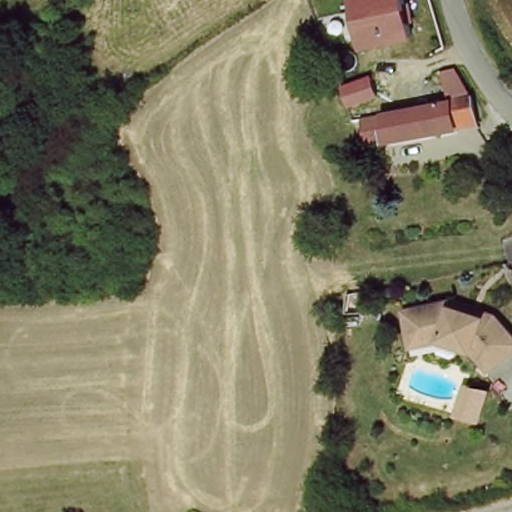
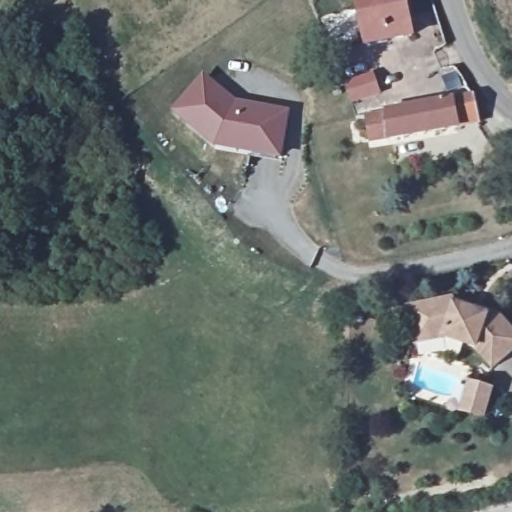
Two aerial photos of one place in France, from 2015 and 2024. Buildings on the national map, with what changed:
unchanged [(331,2),(335,12),(326,15),(323,6),(321,6),(320,0),(338,0),(331,2)]
unchanged [(415,32),(367,44),(358,0),(408,0),(415,32)]
new [(203,75),(236,102),(291,111),(283,161),(215,150),(171,114),(203,75)]
unchanged [(412,78),(416,96),(395,101),(392,82),(412,78)]
unchanged [(465,80),(468,91),(468,92),(467,95),(466,96),(463,96),(461,95),(459,90),(457,90),(455,82),(465,80)]
unchanged [(478,120),(464,122),(465,128),(392,141),(387,116),(389,116),(389,113),(474,97),(478,120)]
unchanged [(512,329),(512,348),(490,365),(475,344),(462,342),(461,334),(447,329),(448,334),(418,339),(412,304),(418,302),(456,296),(483,306),(499,312),(512,329)]
new [(467,381),(497,391),(487,424),(459,413),(467,381)]

